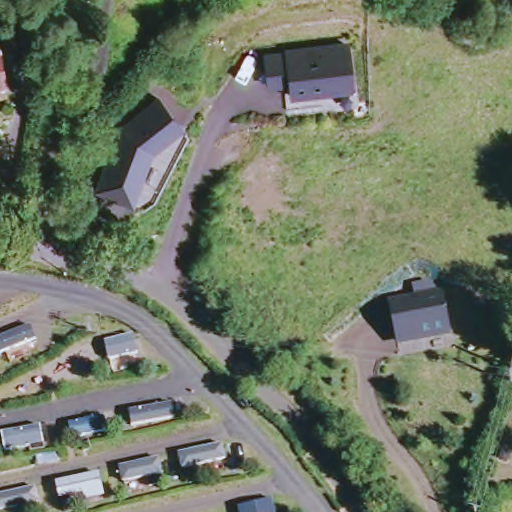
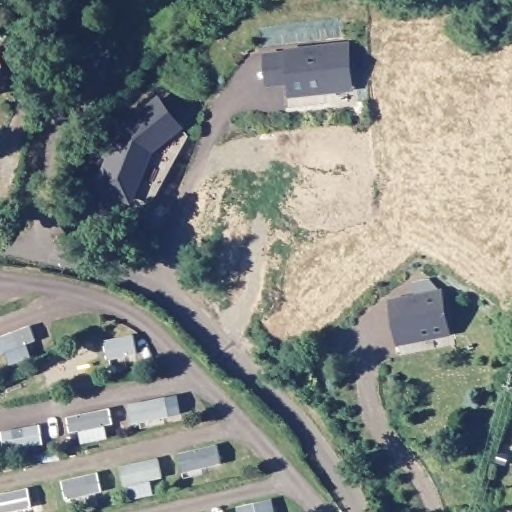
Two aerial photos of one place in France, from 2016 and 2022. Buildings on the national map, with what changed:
unchanged [(347,94),(291,96),(291,85),(269,87),(268,55),(289,54),(344,50),(347,94)]
unchanged [(98,189),(102,175),(107,159),(96,156),(102,139),(114,140),(116,131),(149,97),(174,124),(147,150),(136,185),(130,200),(98,189)]
unchanged [(407,342),(395,300),(441,288),(452,330),(407,342)]
unchanged [(137,426),(135,406),(172,398),(176,421),(137,426)]
unchanged [(72,437),(70,418),(110,411),(112,429),(72,437)]
unchanged [(0,436),(0,434),(49,423),(53,445),(4,454),(0,436)]
unchanged [(176,467),(171,450),(214,443),(219,457),(176,467)]
unchanged [(117,480),(111,463),(153,456),(157,476),(117,480)]
unchanged [(55,506),(50,483),(92,470),(97,494),(55,506)]
unchanged [(15,512),(0,512),(0,488),(32,480),(35,501),(15,507),(15,512)]

